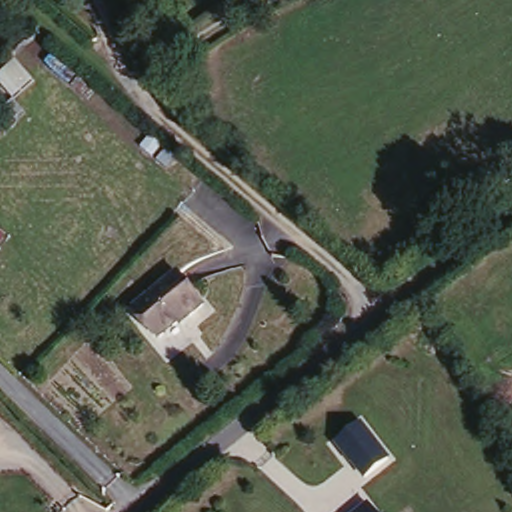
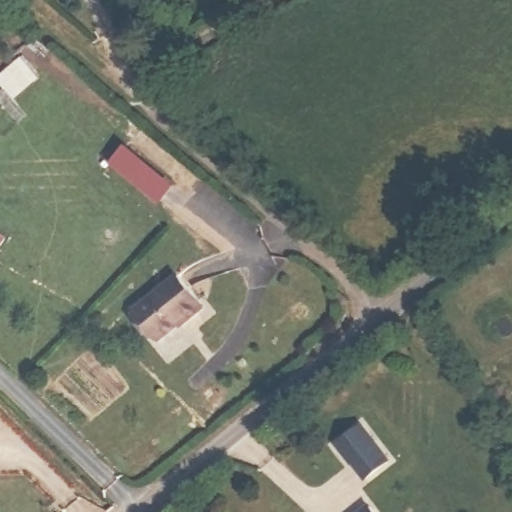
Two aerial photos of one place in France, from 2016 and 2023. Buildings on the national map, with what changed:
unchanged [(0,81),(0,75),(16,56),(39,76),(19,99),(0,81)]
new [(125,149),(172,189),(159,204),(112,164),(125,149)]
unchanged [(205,311),(180,329),(176,324),(154,339),(132,310),(176,275),(205,311)]
unchanged [(392,458),(366,479),(337,442),(363,420),(392,458)]
unchanged [(380,512),(352,512),(370,498),(380,512)]

